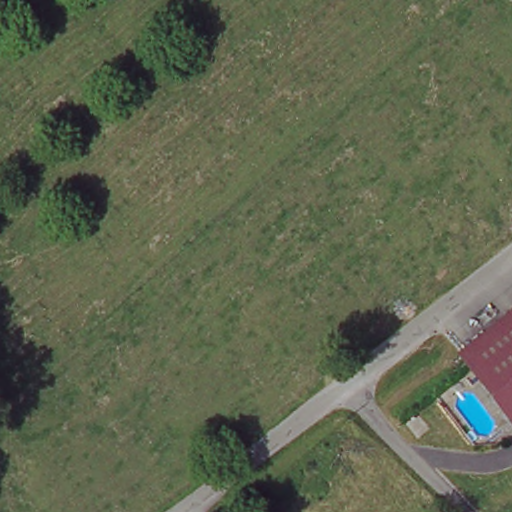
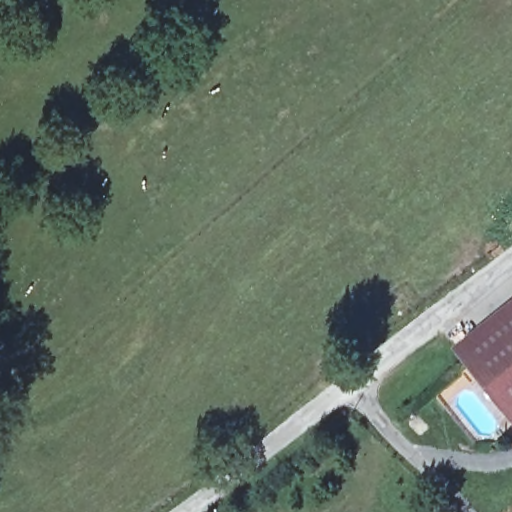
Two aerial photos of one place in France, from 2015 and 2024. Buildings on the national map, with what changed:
unchanged [(462,361),(512,317),(512,416),(462,361)]

